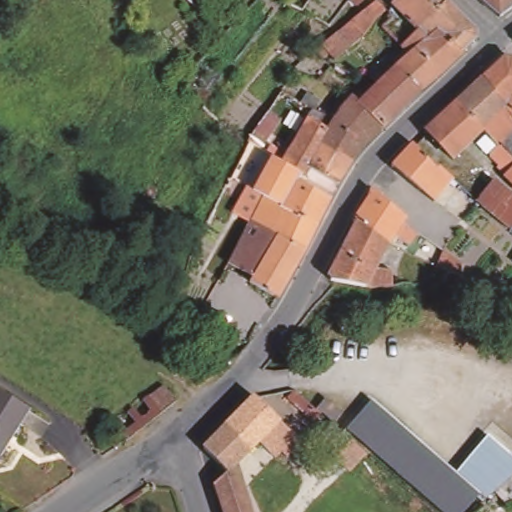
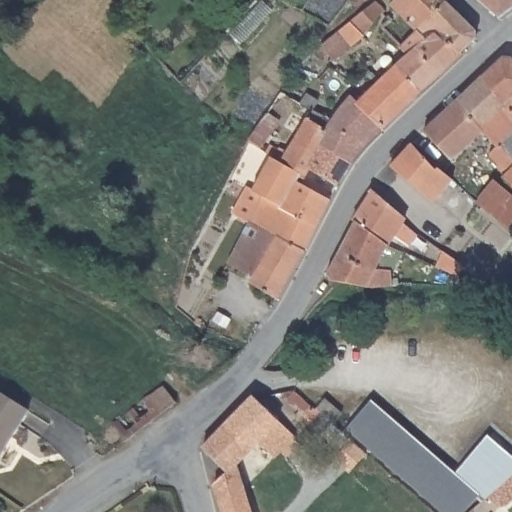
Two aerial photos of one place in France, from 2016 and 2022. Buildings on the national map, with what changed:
unchanged [(349,0),(363,0),(354,9),(346,3),(349,0)]
unchanged [(399,24),(406,20),(392,4),(396,0),(447,0),(478,33),(477,46),(464,56),(439,28),(434,32),(430,35),(425,30),(404,48),(380,29),(393,16),(399,24)]
unchanged [(480,0),(512,0),(512,16),(505,21),(480,0)]
unchanged [(342,32),(355,22),(374,6),(381,1),(387,9),(375,24),(368,32),(366,35),(353,47),(342,32)]
unchanged [(402,63),(410,55),(404,48),(425,30),(430,35),(434,32),(439,28),(464,56),(468,60),(424,97),(398,66),(402,63)]
unchanged [(482,77),(508,54),(512,59),(512,149),(507,145),(507,144),(492,131),(483,122),(507,105),(482,77)]
unchanged [(347,100),(340,95),(336,93),(315,81),(326,69),(353,84),(363,76),(373,89),(381,81),(398,66),(424,97),(386,129),(370,112),(354,94),(347,100)]
unchanged [(482,77),(507,105),(483,122),(457,99),(482,77)]
unchanged [(304,103),(309,94),(339,114),(343,106),(335,103),(340,95),(347,100),(354,94),(370,112),(386,129),(357,165),(325,144),(331,133),(337,123),(304,103)]
unchanged [(483,122),(492,131),(456,161),(424,131),(457,99),(483,122)]
unchanged [(279,119),(261,152),(250,146),(268,113),(279,119)]
unchanged [(308,120),(331,133),(325,144),(357,165),(342,190),(313,173),(308,183),(303,181),(281,169),(308,120)]
unchanged [(412,145),(434,165),(439,169),(443,165),(457,177),(437,204),(393,168),(412,145)]
unchanged [(507,145),(512,149),(512,160),(502,151),(507,145)]
unchanged [(512,163),(512,167),(510,165),(512,163)]
unchanged [(253,198),(272,164),(281,169),(303,181),(300,187),(334,206),(309,251),(255,223),(264,203),(253,198)]
unchanged [(512,181),(512,185),(510,183),(512,181)]
unchanged [(512,195),(512,225),(485,202),(500,185),(512,195)]
unchanged [(374,196),(377,198),(426,235),(418,246),(403,238),(395,249),(356,226),(365,208),(374,196)]
unchanged [(309,251),(279,300),(254,286),(258,279),(231,265),(255,223),(309,251)]
unchanged [(395,249),(382,271),(396,275),(394,288),(339,284),(326,284),(325,279),(356,226),(395,249)]
unchanged [(125,442),(112,426),(163,386),(176,402),(125,442)]
unchanged [(315,405),(307,415),(291,398),(299,391),(315,405)]
unchanged [(0,455),(0,392),(28,410),(0,455)]
unchanged [(219,484),(231,472),(207,448),(229,426),(236,419),(258,396),(260,398),(284,421),(301,437),(279,458),(263,442),(262,444),(255,451),(242,465),(257,512),(227,512),(219,484)]
unchanged [(338,424),(325,414),(320,408),(329,399),(346,414),(338,424)]
unchanged [(486,503),(482,499),(470,512),(447,512),(351,429),(374,402),(458,476),(492,436),(512,452),(512,507),(498,492),(486,503)]
unchanged [(356,440),(345,452),(326,435),(316,424),(325,414),(336,423),(342,428),(353,438),(356,440)]

